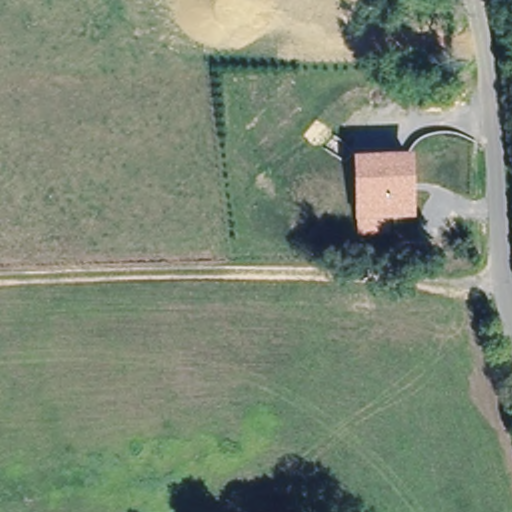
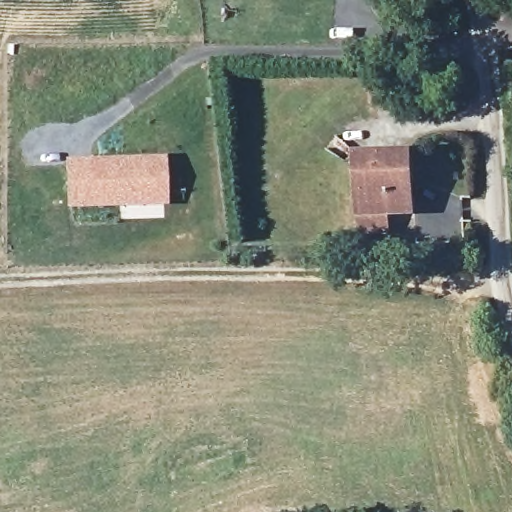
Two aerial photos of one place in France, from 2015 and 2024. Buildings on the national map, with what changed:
unchanged [(363,231),(363,216),(360,158),(411,156),(411,177),(412,193),(413,214),(389,215),(389,230),(363,231)]
new [(66,210),(64,161),(166,157),(168,204),(66,210)]

